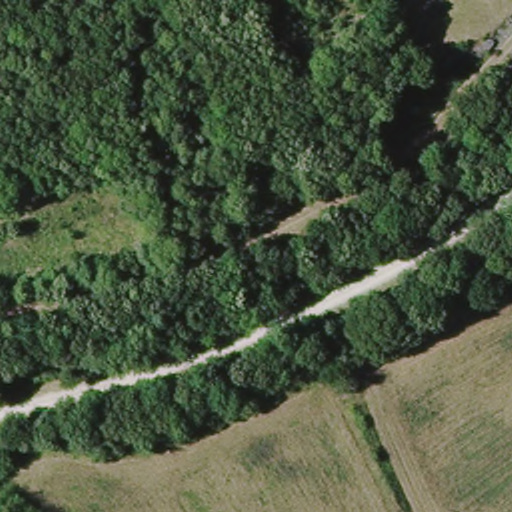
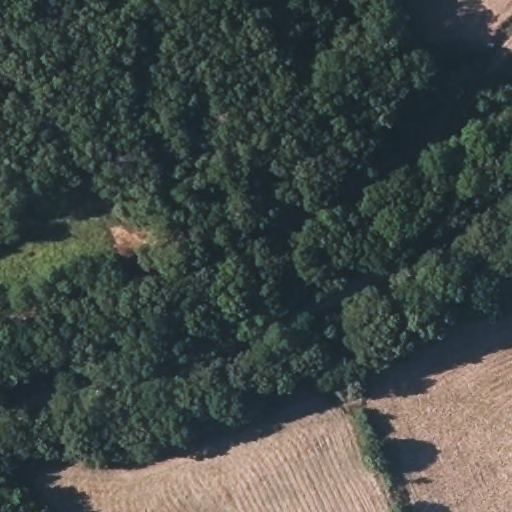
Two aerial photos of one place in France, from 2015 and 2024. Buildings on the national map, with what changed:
[]

